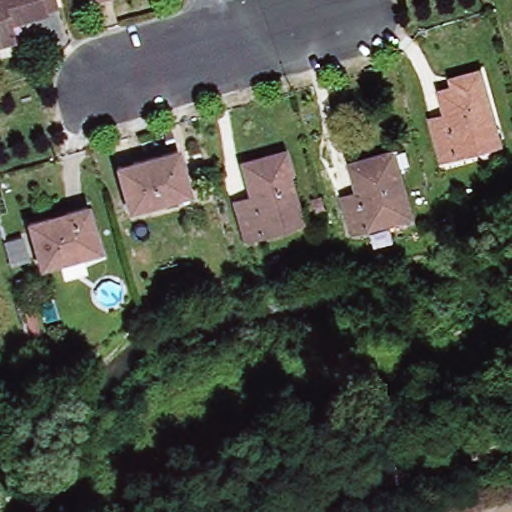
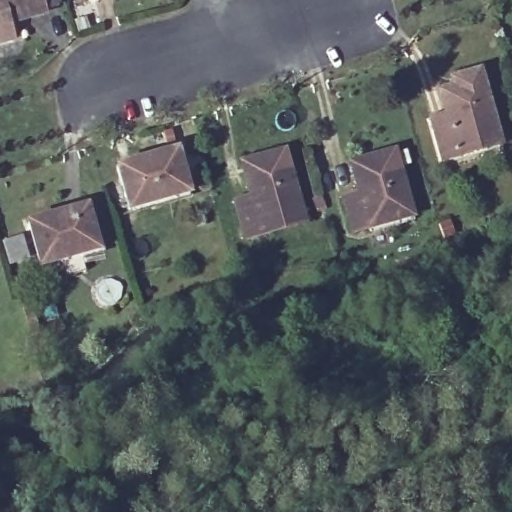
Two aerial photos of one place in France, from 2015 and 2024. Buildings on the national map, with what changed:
unchanged [(7,22),(12,40),(0,43),(0,0),(54,0),(55,6),(42,10),(44,14),(7,22)]
unchanged [(95,1),(94,0),(98,0),(95,1)]
unchanged [(458,160),(442,165),(431,125),(446,120),(439,96),(455,91),(452,84),(461,81),(480,75),(498,139),(501,148),(458,160)]
unchanged [(413,211),(353,228),(343,192),(358,187),(350,159),(367,154),(377,151),(395,146),(413,211)]
unchanged [(129,210),(117,167),(177,150),(190,192),(129,210)]
unchanged [(244,239),(235,201),(250,197),(244,170),(240,162),(265,156),(285,150),(303,215),(305,224),(261,235),(244,239)]
unchanged [(61,255),(41,261),(29,216),(86,200),(99,245),(80,250),(85,267),(65,272),(61,255)]
unchanged [(20,236),(25,257),(10,262),(4,242),(20,236)]

